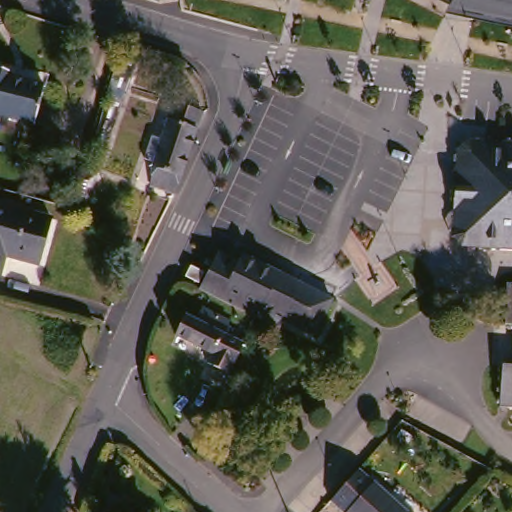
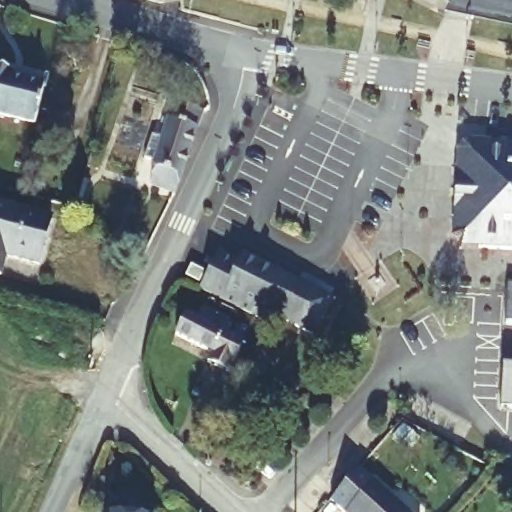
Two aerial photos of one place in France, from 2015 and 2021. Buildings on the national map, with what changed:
unchanged [(441,0),(453,0),(449,5),(441,0)]
unchanged [(470,11),(453,0),(512,0),(512,29),(468,20),(470,11)]
unchanged [(0,116),(0,70),(7,71),(5,76),(40,85),(30,123),(0,116)]
unchanged [(152,138),(155,130),(161,133),(164,134),(172,108),(179,91),(207,100),(201,118),(200,122),(182,176),(180,183),(155,175),(157,155),(157,151),(155,150),(149,148),(152,138)]
unchanged [(442,232),(446,145),(457,135),(512,139),(512,246),(451,242),(442,232)]
unchanged [(10,249),(5,268),(0,267),(0,195),(56,211),(42,259),(10,249)]
unchanged [(303,334),(274,319),(269,328),(245,316),(190,288),(210,249),(230,260),(233,254),(322,299),(303,334)]
unchanged [(497,277),(512,279),(512,322),(495,320),(497,277)]
unchanged [(234,343),(222,374),(197,361),(202,353),(165,334),(175,314),(187,320),(194,307),(222,321),(215,334),(234,343)]
unchanged [(492,360),(512,361),(512,404),(490,402),(492,360)]
unchanged [(325,495),(354,463),(407,512),(344,512),(325,495)]

